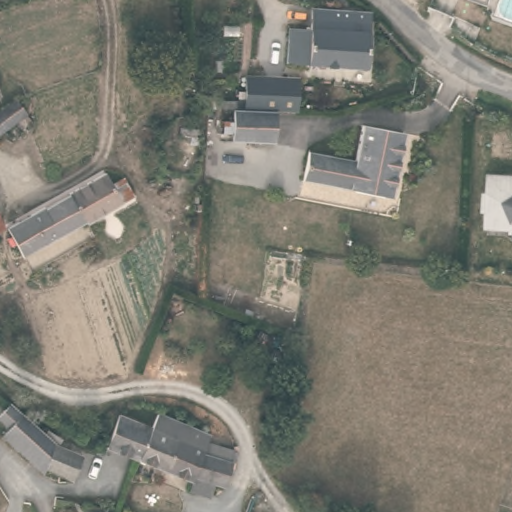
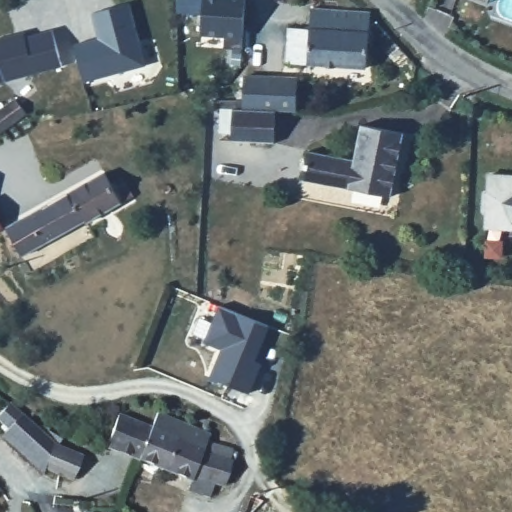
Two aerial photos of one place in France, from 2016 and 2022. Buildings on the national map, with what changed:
new [(205,0),(245,0),(241,49),(225,48),(226,36),(202,34),(205,0)]
unchanged [(489,5),(475,0),(490,0),(489,5)]
new [(129,3),(146,65),(84,81),(74,43),(97,36),(93,12),(129,3)]
unchanged [(283,66),(284,29),(307,30),(308,8),(369,14),(363,74),(283,66)]
unchanged [(294,115),(272,115),(270,147),(226,145),(226,111),(242,111),(242,77),(295,79),(294,115)]
demolished [(0,100),(0,97),(1,99),(0,100)]
unchanged [(24,116),(0,128),(0,110),(18,102),(24,116)]
unchanged [(401,137),(386,201),(338,190),(345,161),(358,128),(401,137)]
unchanged [(338,190),(299,182),(305,153),(345,161),(338,190)]
unchanged [(512,174),(512,235),(483,236),(484,213),(480,212),(482,193),(486,192),(487,173),(512,174)]
unchanged [(20,259),(3,228),(101,177),(117,205),(113,208),(20,259)]
new [(220,307),(269,325),(255,360),(262,362),(250,393),(210,377),(221,349),(205,342),(220,307)]
unchanged [(33,429),(40,436),(47,429),(61,441),(55,448),(82,459),(72,482),(40,471),(17,454),(24,447),(0,428),(0,417),(4,412),(27,437),(33,429)]
unchanged [(106,455),(119,423),(146,431),(150,419),(208,440),(202,459),(227,469),(221,491),(204,486),(134,464),(106,455)]

